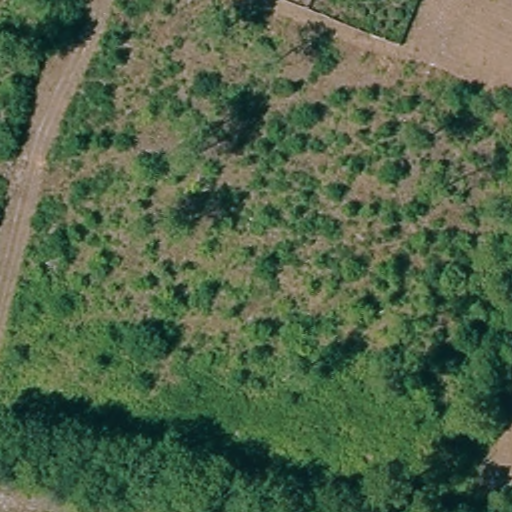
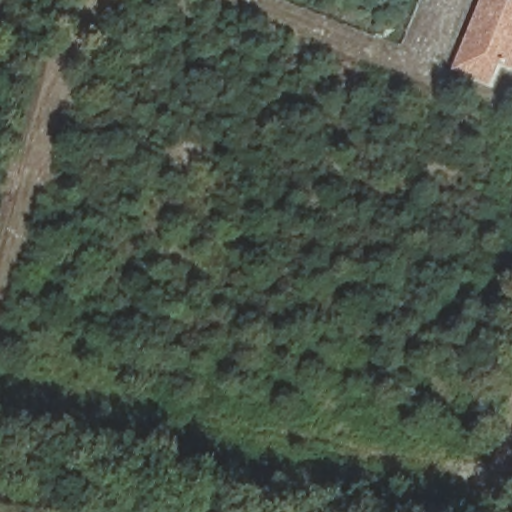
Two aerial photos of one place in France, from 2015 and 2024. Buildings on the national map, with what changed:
new [(499,65),(491,85),(453,69),(482,0),(512,0),(512,70),(499,65)]

